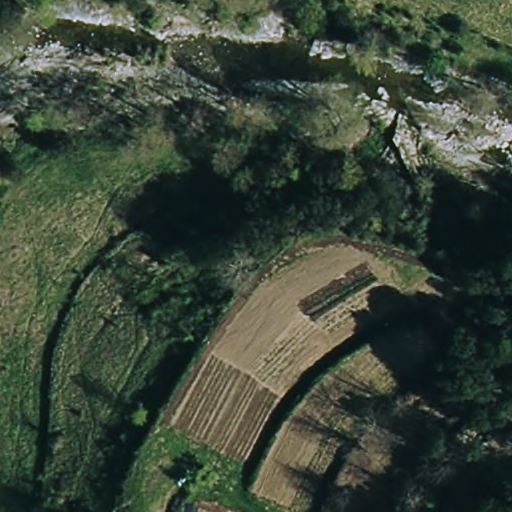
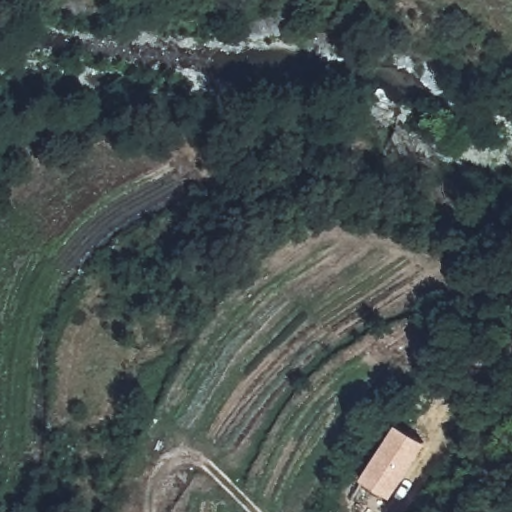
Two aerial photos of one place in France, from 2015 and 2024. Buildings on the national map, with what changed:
new [(427,445),(390,499),(361,479),(396,426),(427,445)]

